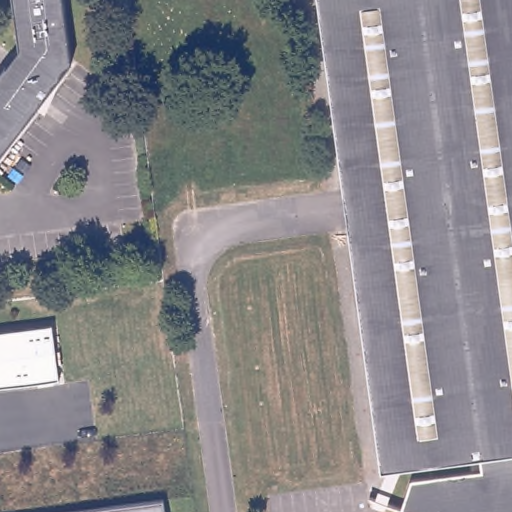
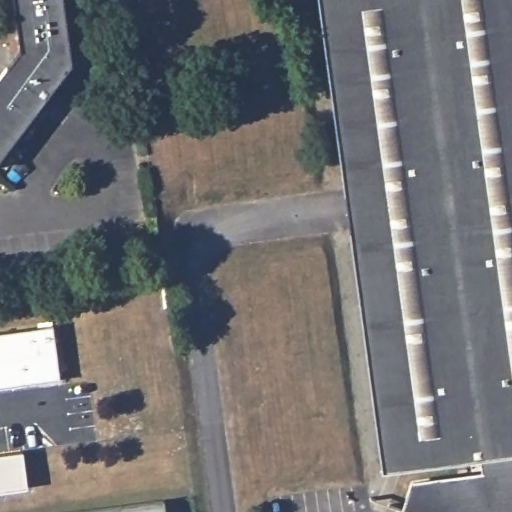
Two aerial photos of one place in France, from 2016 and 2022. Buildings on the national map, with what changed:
unchanged [(77,60),(0,162),(0,76),(22,47),(16,0),(68,0),(77,60)]
unchanged [(417,512),(405,509),(412,482),(484,472),(482,455),(383,468),(318,0),(512,0),(512,512),(417,512)]
unchanged [(63,380),(0,388),(0,334),(56,327),(63,380)]
new [(24,487),(0,490),(0,453),(19,450),(24,487)]
unchanged [(167,512),(67,512),(166,499),(167,512)]

